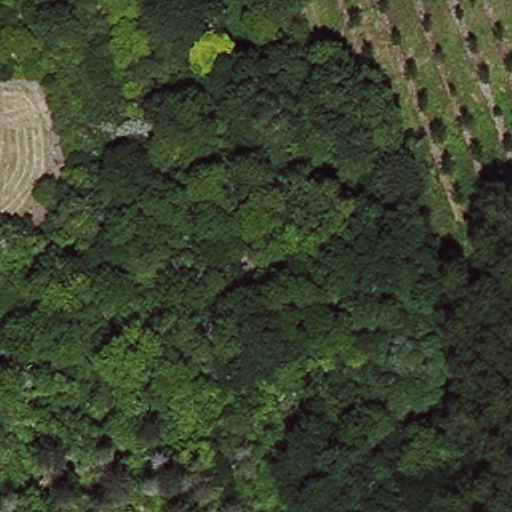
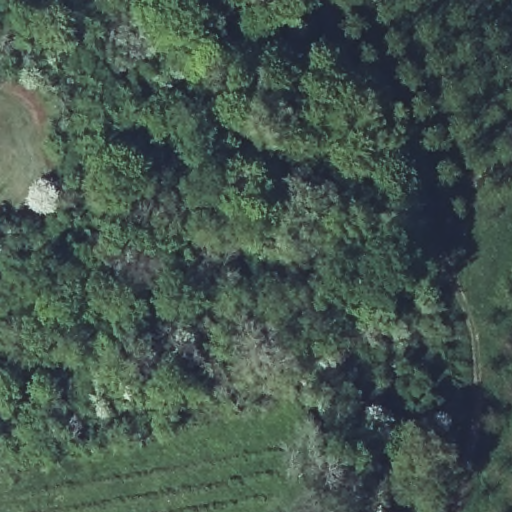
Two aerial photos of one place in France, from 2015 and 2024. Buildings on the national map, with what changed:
[]

